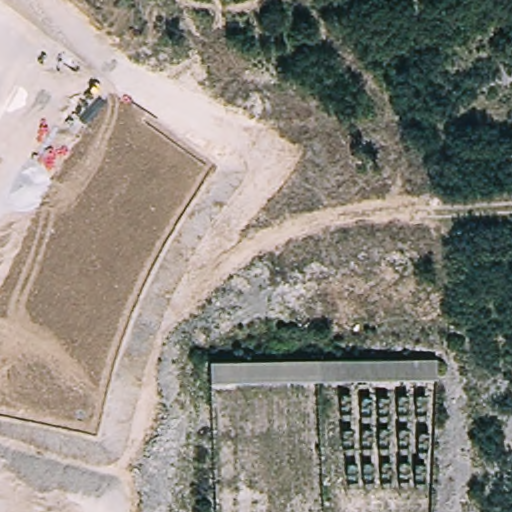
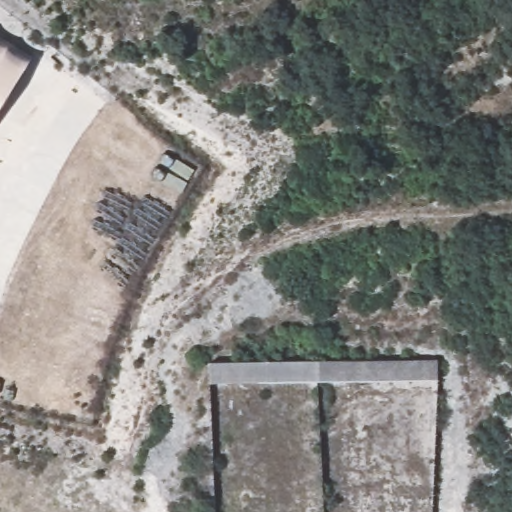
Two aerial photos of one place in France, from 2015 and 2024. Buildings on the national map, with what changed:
new [(32,58),(0,108),(0,37),(32,58)]
unchanged [(436,382),(319,384),(211,386),(209,359),(437,357),(436,382)]

